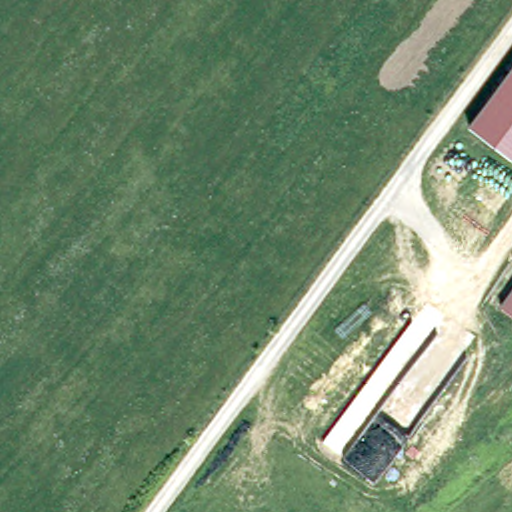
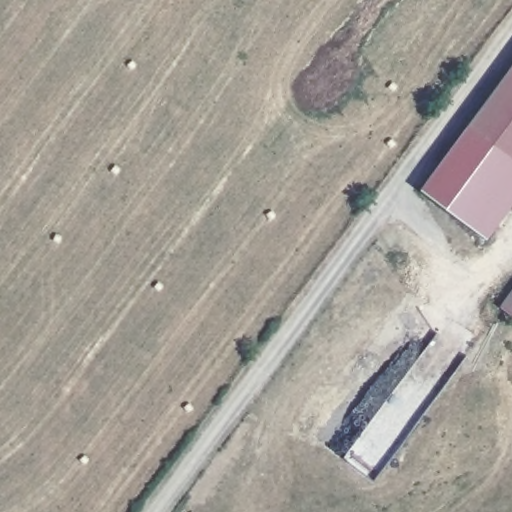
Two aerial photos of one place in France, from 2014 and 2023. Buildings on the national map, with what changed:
unchanged [(512,72),(512,151),(475,123),(512,72)]
new [(421,189),(475,123),(512,151),(512,207),(488,239),(421,189)]
unchanged [(512,320),(497,309),(512,288),(512,320)]

